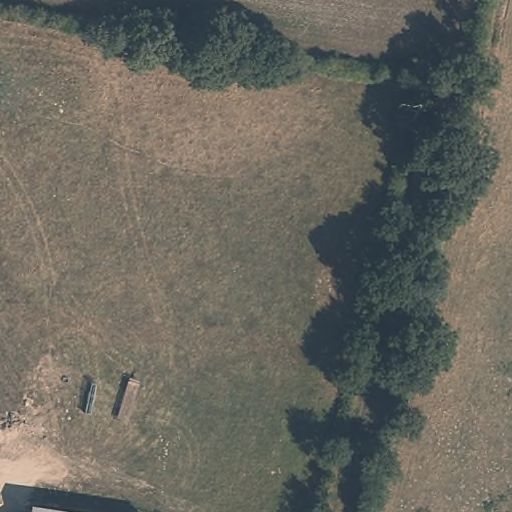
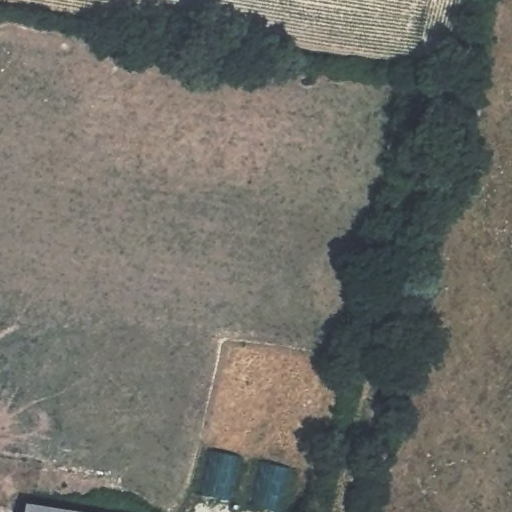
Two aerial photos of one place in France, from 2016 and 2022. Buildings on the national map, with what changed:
unchanged [(76,512),(29,512),(30,505),(76,512)]

